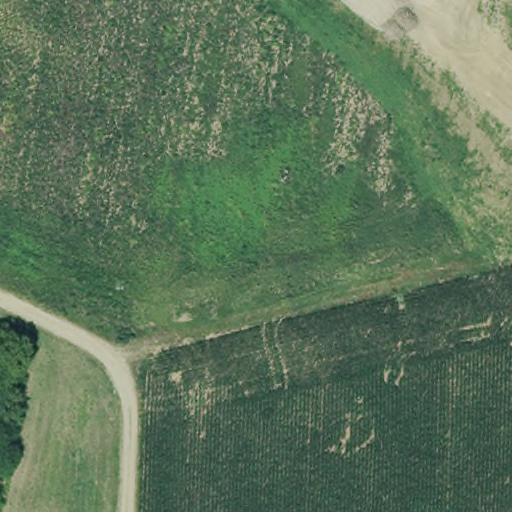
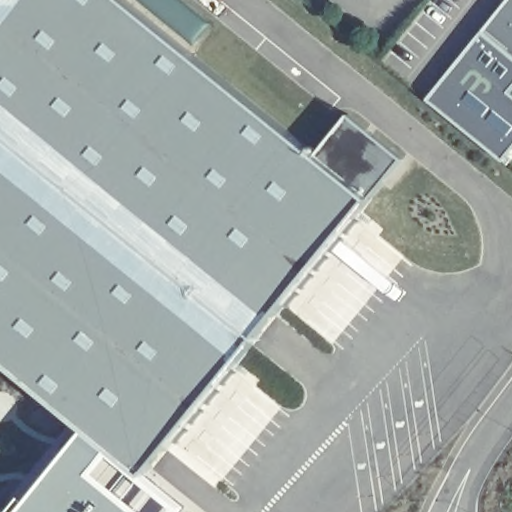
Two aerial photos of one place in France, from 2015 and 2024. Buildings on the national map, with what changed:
new [(120,512),(16,512),(58,452),(0,408),(0,0),(111,0),(361,205),(120,512)]
new [(506,0),(512,0),(512,56),(482,31),(506,0)]

